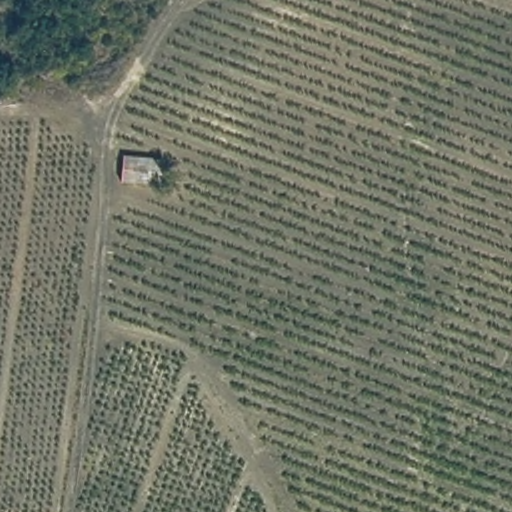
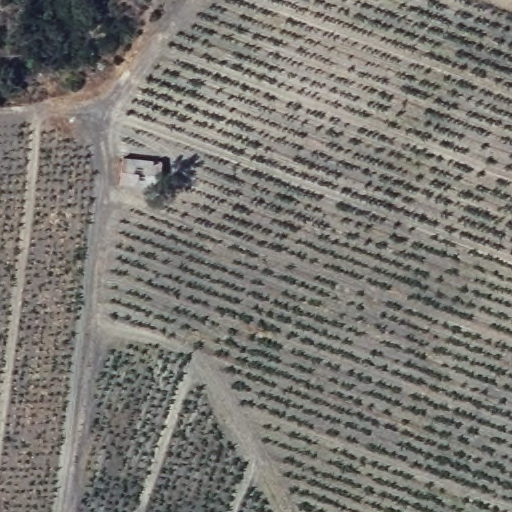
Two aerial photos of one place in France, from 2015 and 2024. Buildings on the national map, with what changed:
unchanged [(169,154),(167,182),(124,179),(125,151),(169,154)]

